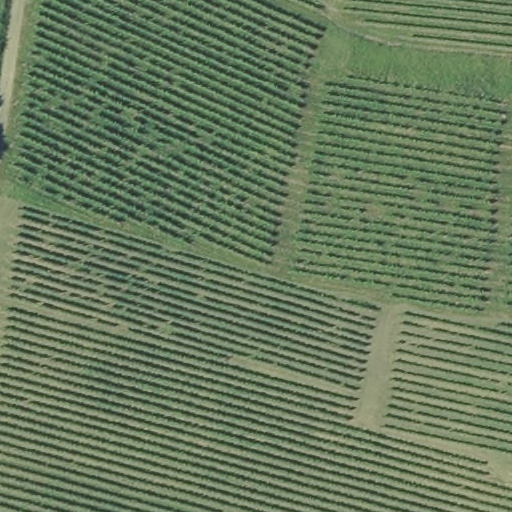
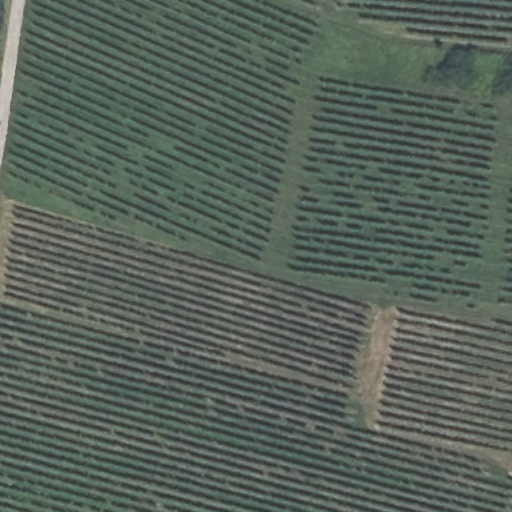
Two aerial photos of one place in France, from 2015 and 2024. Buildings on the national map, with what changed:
[]

